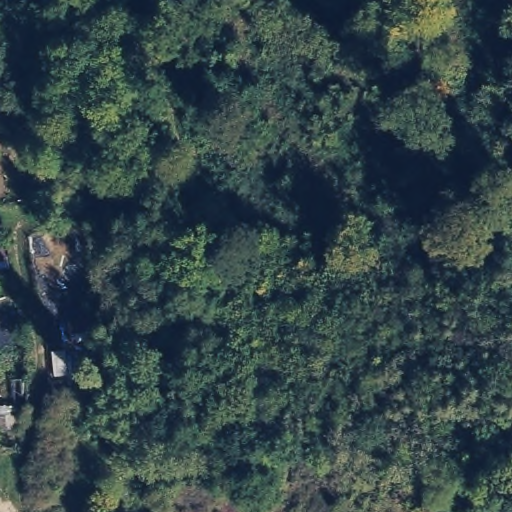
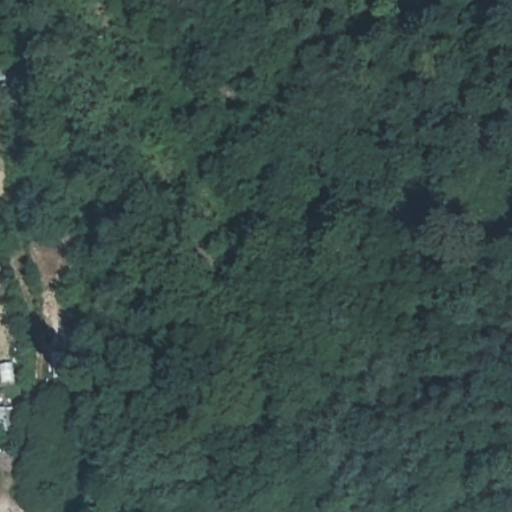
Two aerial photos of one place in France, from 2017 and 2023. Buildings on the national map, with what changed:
unchanged [(67,317),(93,313),(97,339),(69,343),(67,317)]
unchanged [(10,410),(11,453),(0,453),(0,410),(10,410)]

